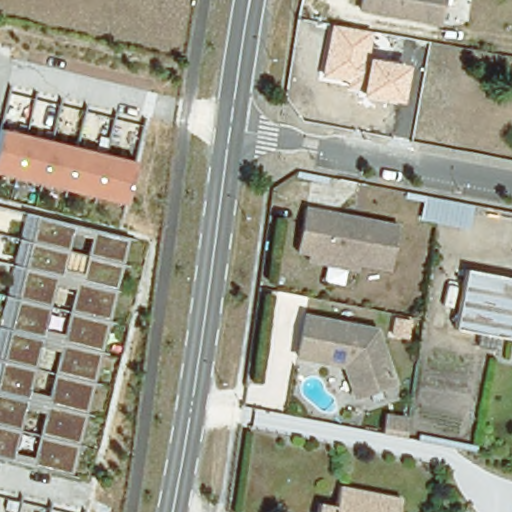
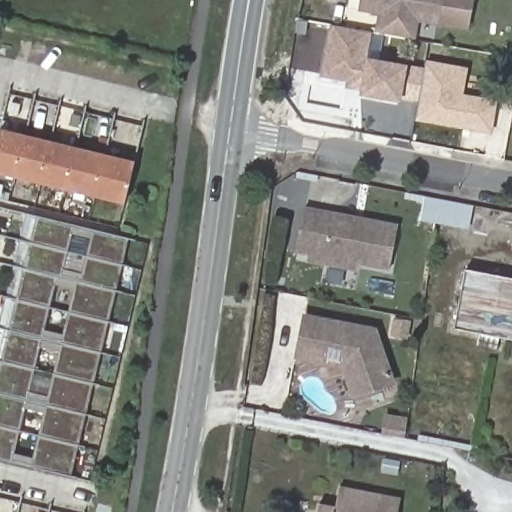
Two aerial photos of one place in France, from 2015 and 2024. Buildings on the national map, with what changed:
unchanged [(442,25),(363,10),(364,0),(446,0),(442,25)]
new [(446,0),(473,0),(468,30),(442,25),(446,0)]
new [(378,14),(419,21),(416,39),(375,31),(378,14)]
unchanged [(402,102),(343,91),(344,81),(320,76),(330,25),(371,32),(366,57),(409,66),(402,102)]
new [(418,102),(402,100),(409,66),(410,65),(425,67),(426,60),(468,67),(463,95),(498,100),(492,134),(416,121),(418,102)]
unchanged [(125,206),(0,176),(0,131),(136,164),(125,206)]
unchanged [(468,231),(465,231),(421,222),(425,199),(472,207),(468,231)]
unchanged [(394,269),(313,254),(301,251),(309,209),(321,211),(402,226),(394,269)]
unchanged [(72,477),(0,461),(0,362),(36,218),(127,238),(72,477)]
unchanged [(512,339),(510,349),(452,336),(463,280),(512,289),(512,339)]
unchanged [(307,316),(376,330),(394,381),(356,395),(345,365),(299,355),(307,316)]
unchanged [(413,437),(393,433),(395,415),(415,419),(413,437)]
unchanged [(336,510),(342,486),(401,500),(398,512),(316,512),(318,506),(336,510)]

